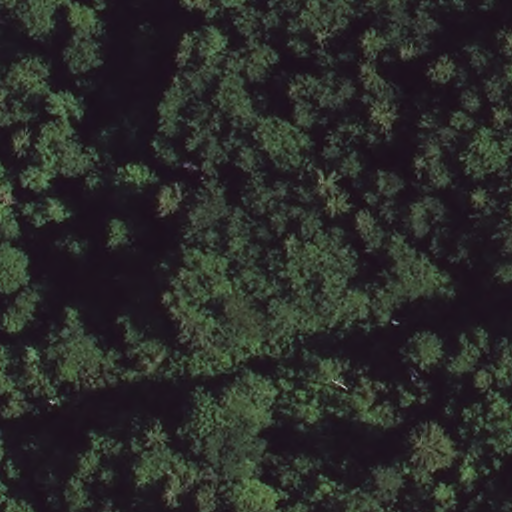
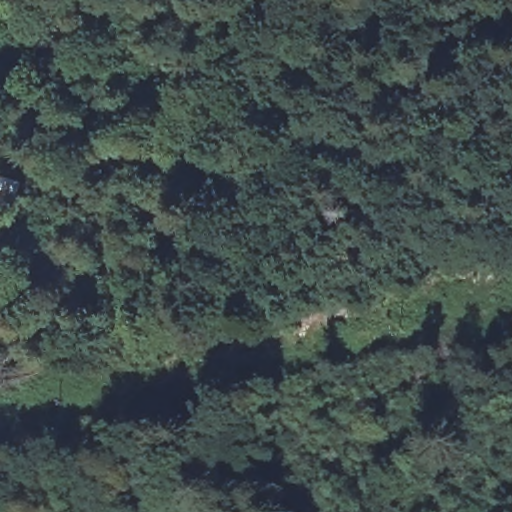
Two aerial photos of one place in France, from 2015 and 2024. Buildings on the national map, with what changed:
[]

